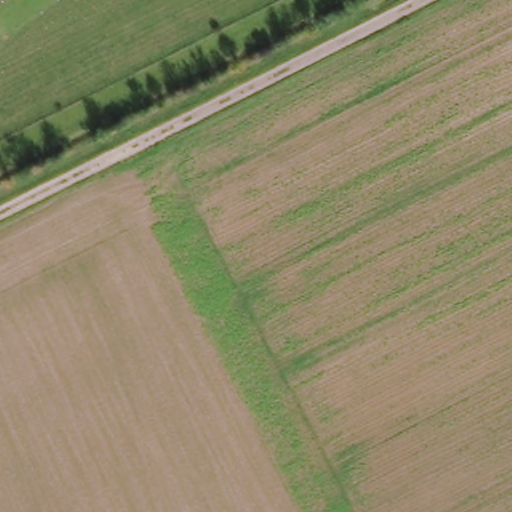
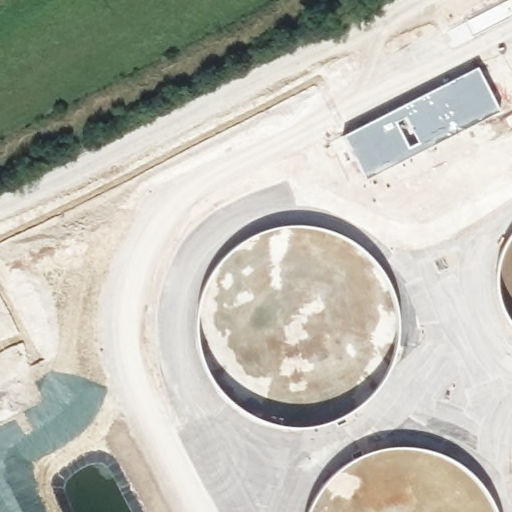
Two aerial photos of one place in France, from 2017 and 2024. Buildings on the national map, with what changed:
new [(342,136),(477,67),(500,112),(364,181),(342,136)]

